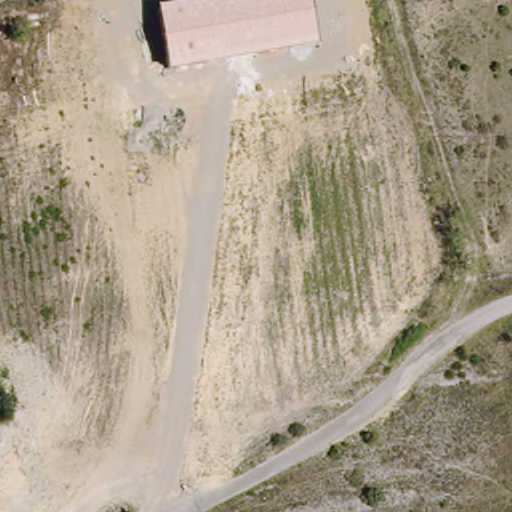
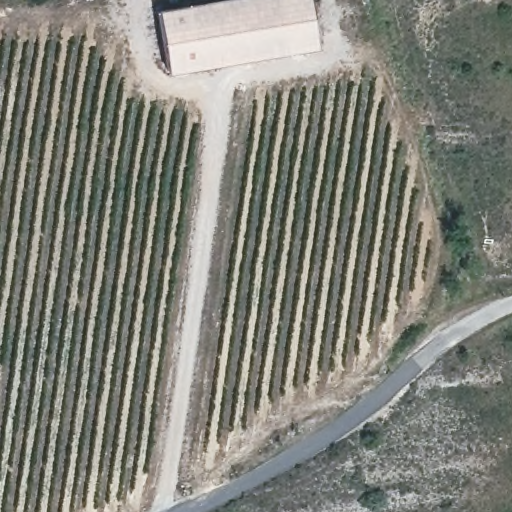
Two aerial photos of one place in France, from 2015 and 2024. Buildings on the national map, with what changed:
unchanged [(158,7),(203,0),(309,0),(318,46),(169,70),(158,7)]

